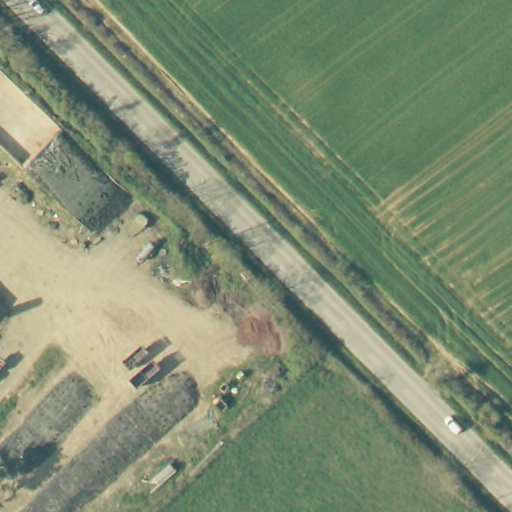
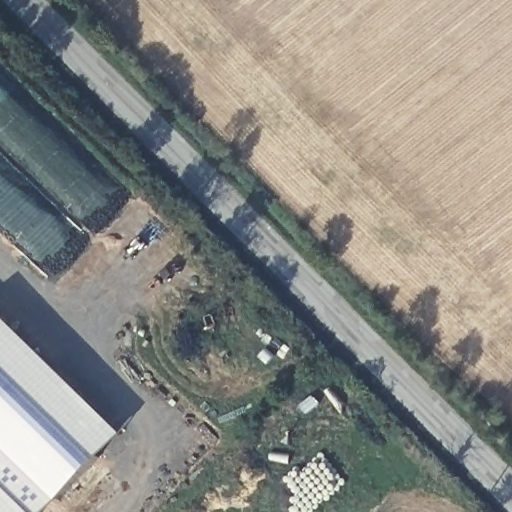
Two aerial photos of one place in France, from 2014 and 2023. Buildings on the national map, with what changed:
new [(120,439),(46,512),(0,512),(0,315),(120,439)]

